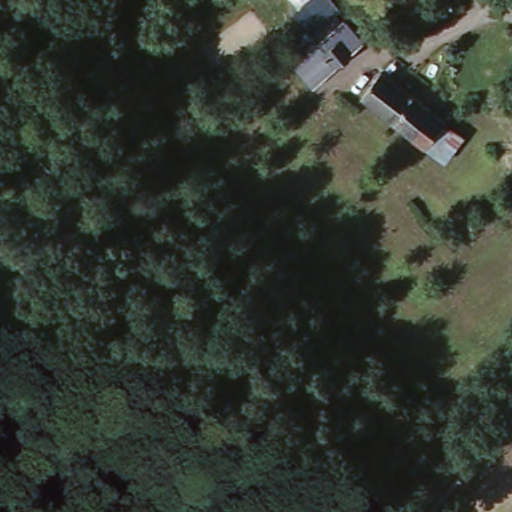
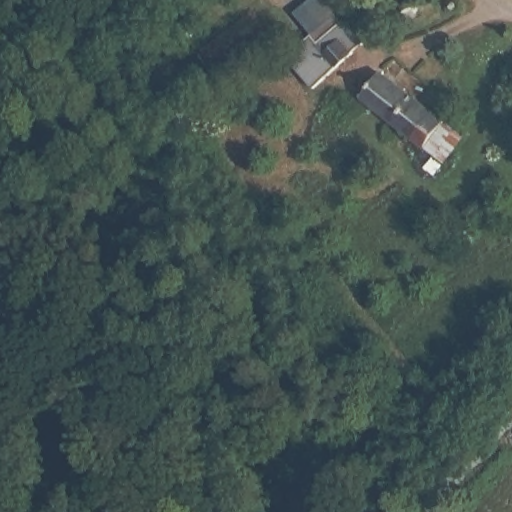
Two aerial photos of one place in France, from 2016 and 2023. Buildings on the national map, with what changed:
unchanged [(319,33),(337,17),(366,39),(342,64),(313,93),(289,65),(319,33)]
unchanged [(426,145),(408,132),(359,95),(381,68),(446,118),(426,145)]

